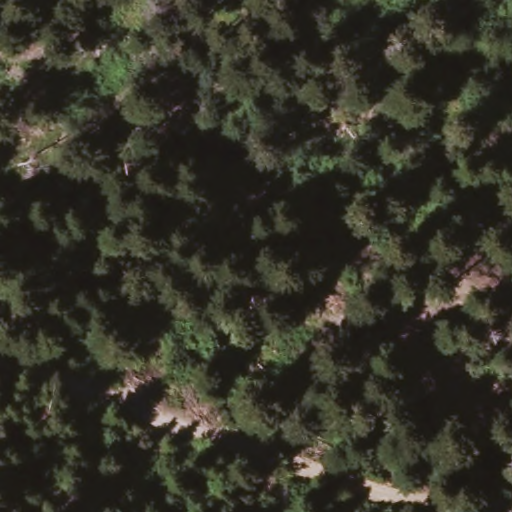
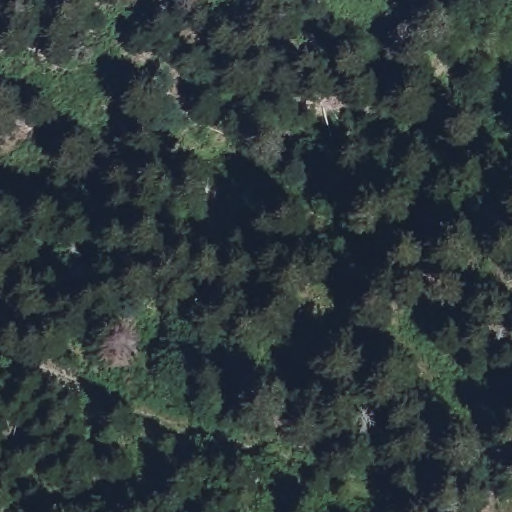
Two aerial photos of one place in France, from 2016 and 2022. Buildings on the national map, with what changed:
[]

